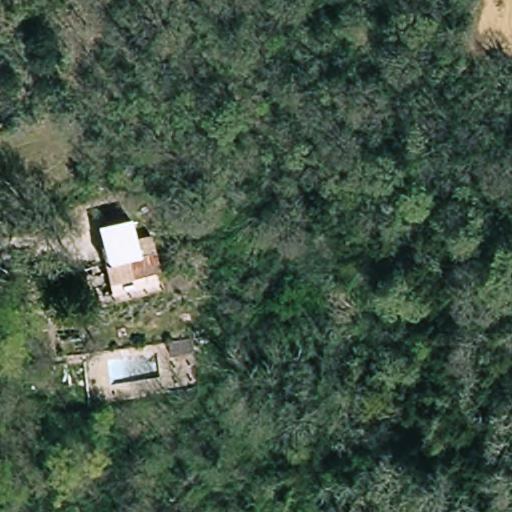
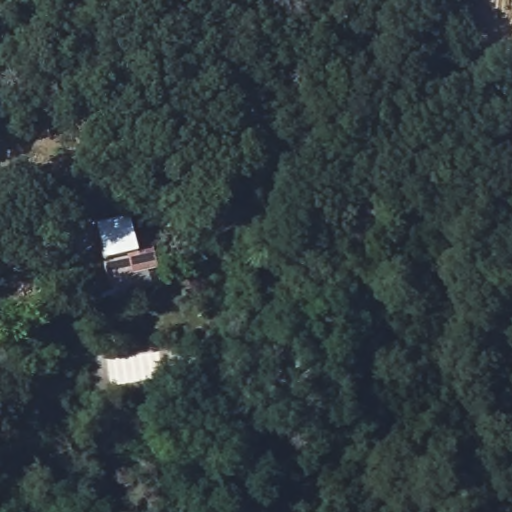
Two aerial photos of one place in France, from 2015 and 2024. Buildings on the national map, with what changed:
unchanged [(132,220),(136,237),(153,234),(161,270),(111,281),(103,244),(106,243),(102,226),(132,220)]

